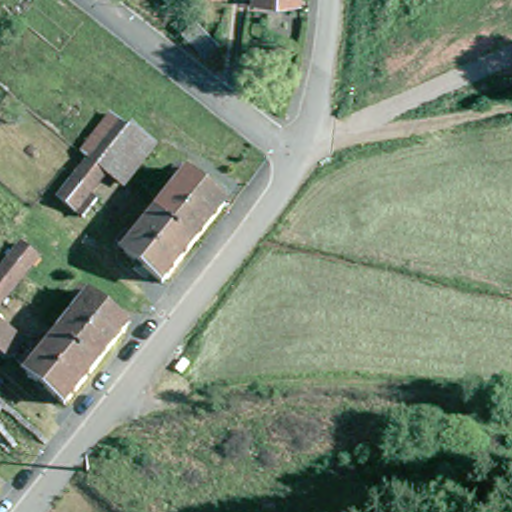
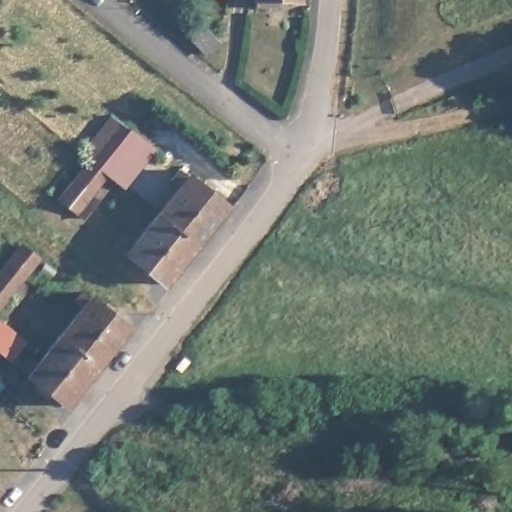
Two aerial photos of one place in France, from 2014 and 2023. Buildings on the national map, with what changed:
unchanged [(67,200),(82,182),(97,163),(128,121),(145,134),(112,176),(98,195),(83,213),(67,200)]
unchanged [(182,179),(173,174),(180,163),(228,200),(195,242),(157,211),(182,179)]
unchanged [(121,239),(127,230),(136,237),(157,211),(195,242),(167,278),(121,239)]
unchanged [(24,238),(40,250),(23,270),(8,290),(0,300),(0,268),(8,258),(24,238)]
unchanged [(85,306),(78,300),(85,290),(132,327),(100,367),(62,336),(85,306)]
unchanged [(10,354),(0,346),(0,316),(25,336),(10,354)]
unchanged [(25,366),(33,355),(42,362),(62,336),(100,367),(70,404),(25,366)]
unchanged [(0,492),(0,490),(1,491),(0,492)]

